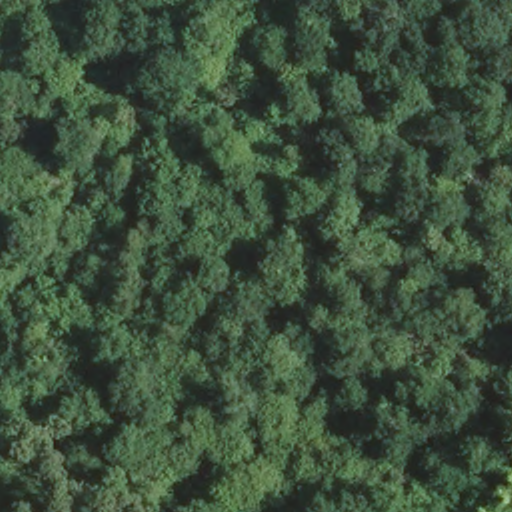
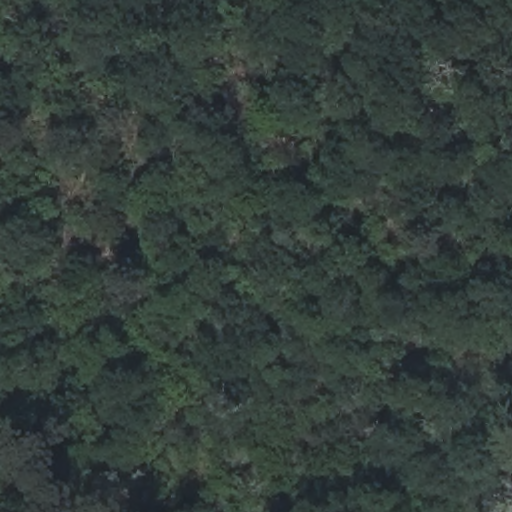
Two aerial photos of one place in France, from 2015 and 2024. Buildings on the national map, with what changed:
[]

